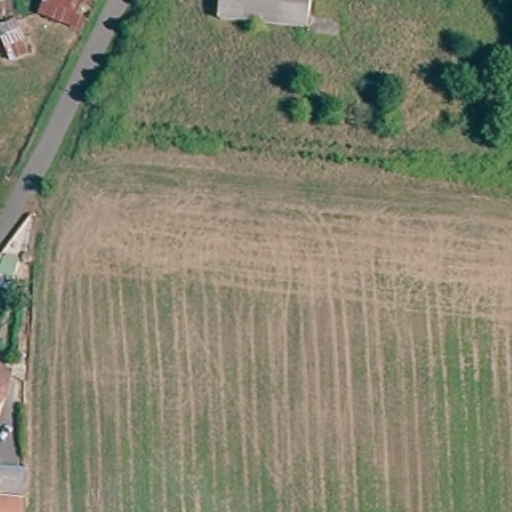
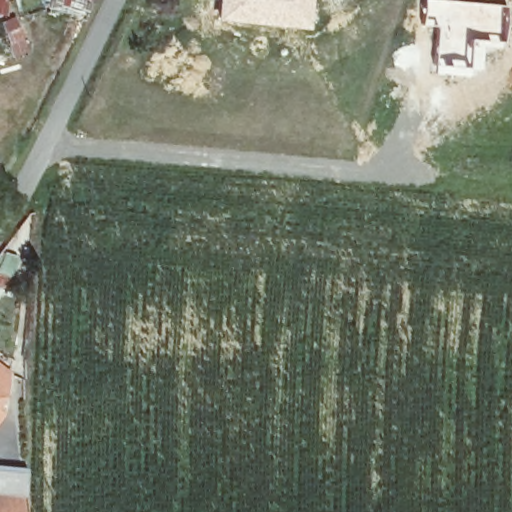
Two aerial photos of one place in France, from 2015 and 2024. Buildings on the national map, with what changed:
unchanged [(0,15),(0,0),(2,0),(0,15)]
unchanged [(80,27),(40,11),(45,0),(91,0),(80,27)]
unchanged [(306,26),(222,17),(223,0),(309,0),(306,26)]
new [(425,0),(455,0),(500,5),(498,34),(466,30),(465,46),(470,47),(466,69),(451,66),(452,59),(445,57),(445,62),(447,63),(446,69),(436,70),(438,28),(423,26),(425,0)]
unchanged [(0,379),(0,364),(6,369),(0,379)]
unchanged [(0,395),(0,392),(1,393),(0,395)]
unchanged [(20,495),(21,512),(0,512),(0,493),(20,495)]

